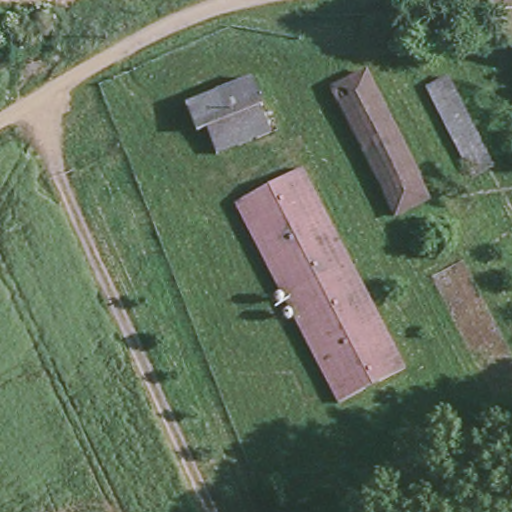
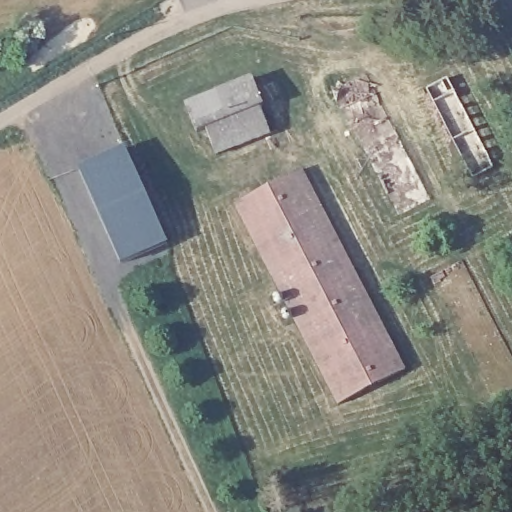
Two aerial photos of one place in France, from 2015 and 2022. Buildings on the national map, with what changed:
unchanged [(430,200),(395,220),(327,86),(365,68),(430,200)]
unchanged [(211,156),(198,130),(190,135),(180,101),(253,74),(274,133),(211,156)]
unchanged [(493,165),(474,176),(421,87),(440,76),(493,165)]
new [(122,144),(165,238),(118,260),(75,165),(122,144)]
unchanged [(335,405),(232,201),(300,169),(405,368),(335,405)]

